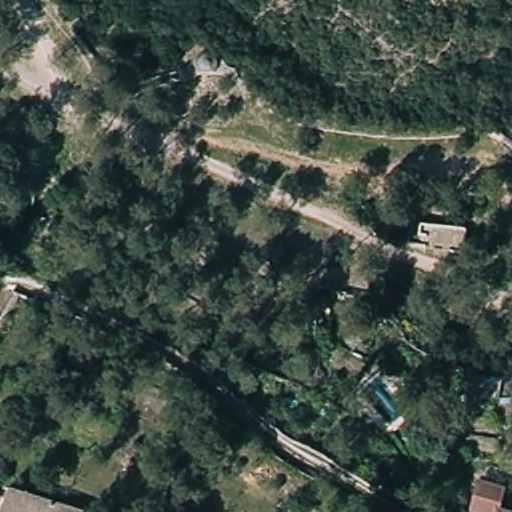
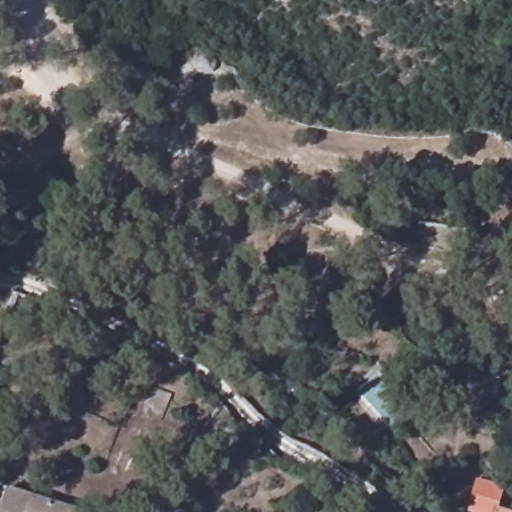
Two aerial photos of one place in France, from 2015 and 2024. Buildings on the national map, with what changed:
unchanged [(220,69),(217,73),(213,76),(208,76),(204,76),(200,73),(197,69),(196,64),(197,60),(200,56),(204,53),(208,51),(213,53),(217,56),(220,60),(221,64),(220,69)]
unchanged [(499,383),(494,407),(464,398),(468,376),(499,383)]
unchanged [(478,484),(502,491),(496,510),(502,512),(470,512),(478,484)]
unchanged [(4,492),(78,512),(0,512),(0,504),(4,492)]

